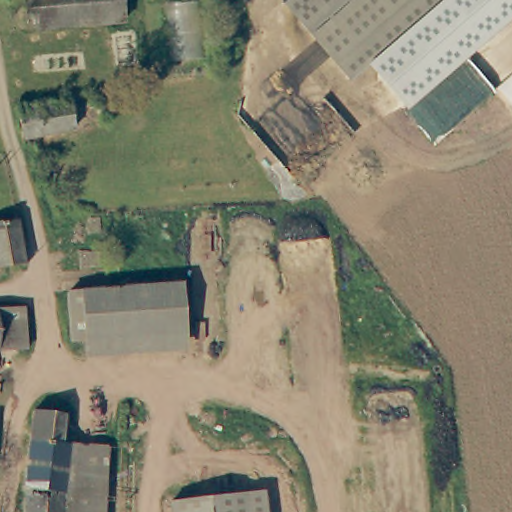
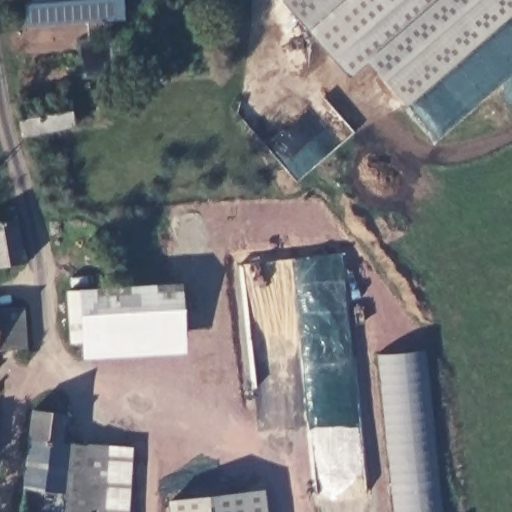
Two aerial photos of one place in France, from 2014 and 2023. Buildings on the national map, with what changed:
unchanged [(21,0),(83,0),(85,19),(24,24),(21,0)]
unchanged [(117,0),(119,15),(85,19),(83,0),(117,0)]
unchanged [(287,0),(439,0),(352,73),(287,0)]
unchanged [(367,60),(439,0),(512,0),(512,16),(407,109),(367,60)]
unchanged [(18,115),(20,105),(70,96),(75,126),(22,136),(18,115)]
unchanged [(25,264),(0,269),(0,226),(19,223),(25,254),(25,264)]
unchanged [(106,292),(185,287),(188,351),(87,357),(87,343),(74,344),(71,294),(106,292)]
unchanged [(28,349),(0,349),(0,309),(24,308),(28,349)]
new [(380,355),(428,349),(446,512),(397,512),(380,355)]
unchanged [(62,414),(61,444),(132,440),(128,512),(21,512),(22,499),(32,413),(62,414)]
unchanged [(254,497),(256,512),(177,512),(177,509),(254,497)]

